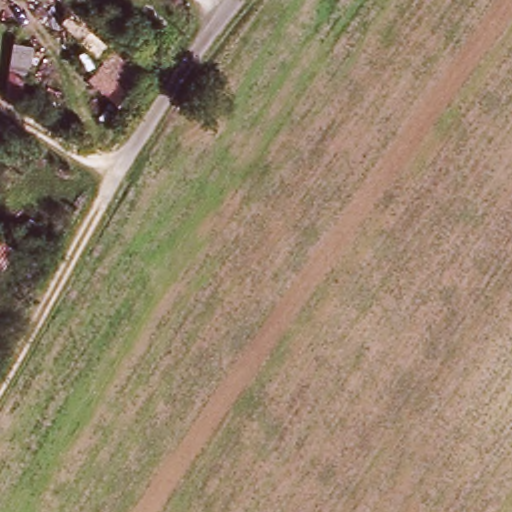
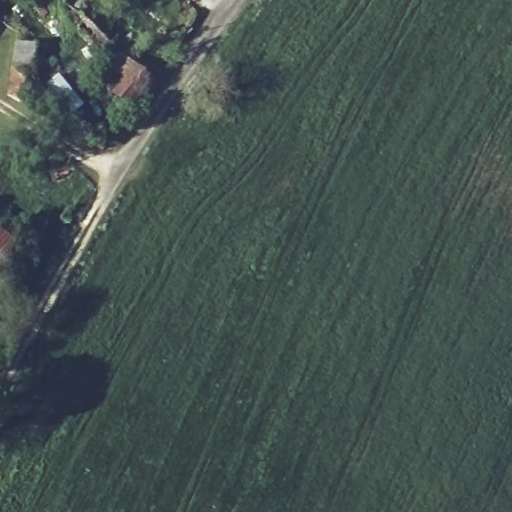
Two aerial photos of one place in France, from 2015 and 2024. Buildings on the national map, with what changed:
unchanged [(66,23),(73,13),(106,44),(97,54),(66,23)]
unchanged [(16,43),(34,46),(29,78),(24,77),(20,103),(8,95),(16,43)]
unchanged [(152,86),(133,110),(97,79),(117,55),(152,86)]
unchanged [(33,248),(22,241),(35,218),(47,226),(33,248)]
unchanged [(0,269),(0,234),(17,246),(0,269)]

